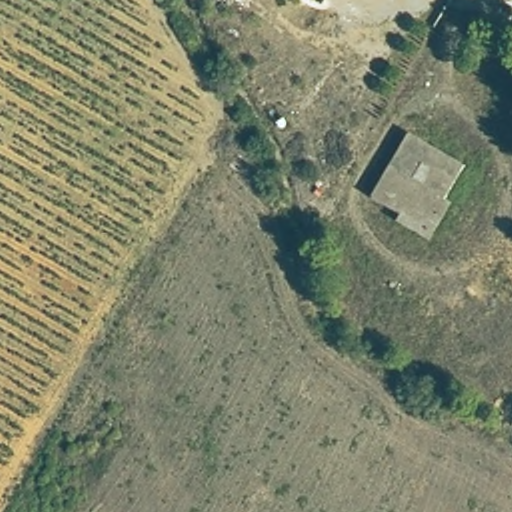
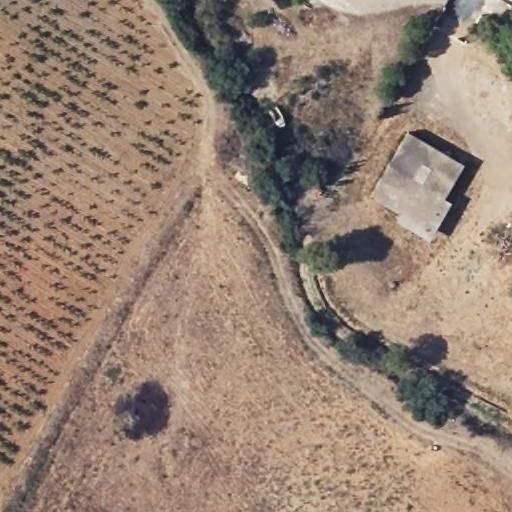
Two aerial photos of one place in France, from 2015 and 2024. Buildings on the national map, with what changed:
unchanged [(422,234),(364,204),(398,137),(457,166),(422,234)]

